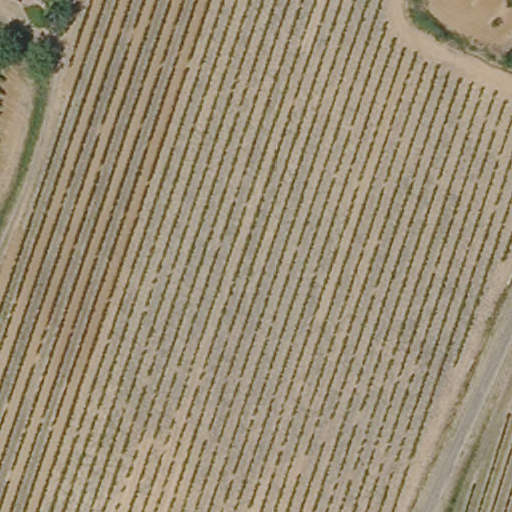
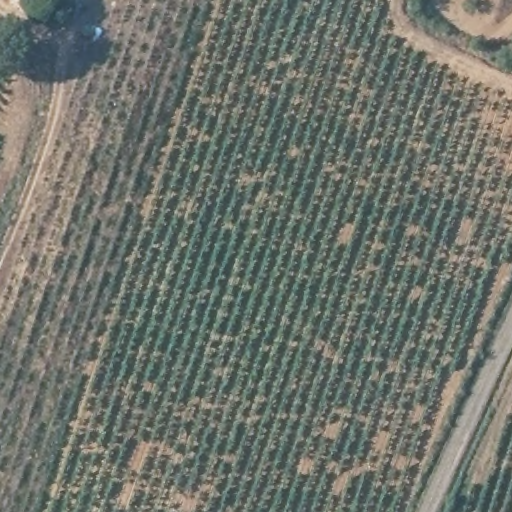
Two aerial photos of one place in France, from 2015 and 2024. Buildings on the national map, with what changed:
unchanged [(30,0),(57,0),(50,13),(30,0)]

